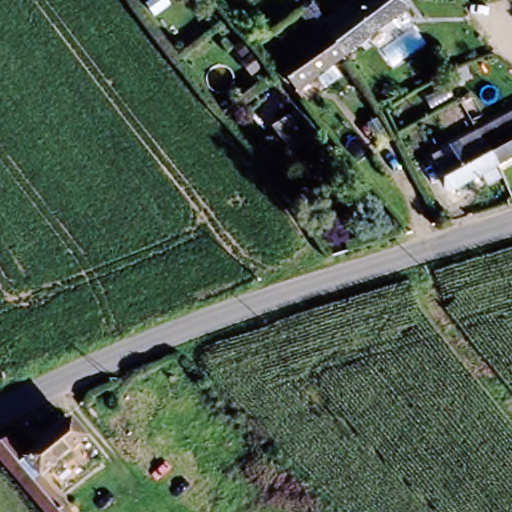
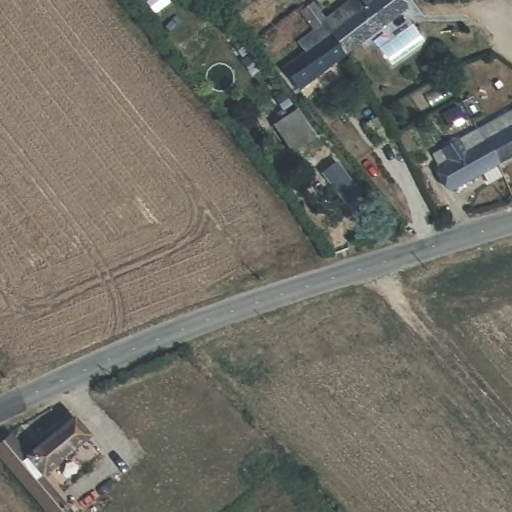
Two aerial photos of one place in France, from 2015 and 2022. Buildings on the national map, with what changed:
unchanged [(348,1),(350,0),(403,0),(411,11),(347,60),(320,27),(350,5),(348,1)]
unchanged [(300,96),(274,62),(311,34),(299,19),(308,12),(320,27),(347,60),(300,96)]
unchanged [(243,39),(265,66),(254,75),(232,48),(243,39)]
unchanged [(460,105),(466,118),(449,126),(443,114),(460,105)]
unchanged [(298,109),(317,138),(292,156),(272,126),(298,109)]
unchanged [(512,159),(501,166),(482,129),(512,112),(512,159)]
unchanged [(493,183),(488,174),(454,193),(434,156),(482,129),(501,166),(499,168),(503,177),(493,183)]
unchanged [(0,463),(0,443),(7,438),(24,458),(67,424),(80,439),(35,476),(65,512),(40,512),(7,472),(0,463)]

